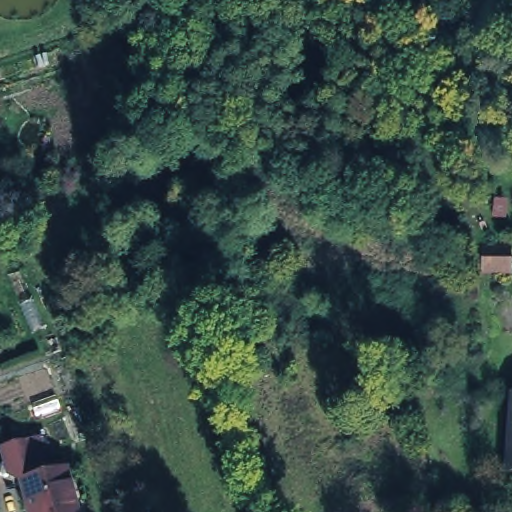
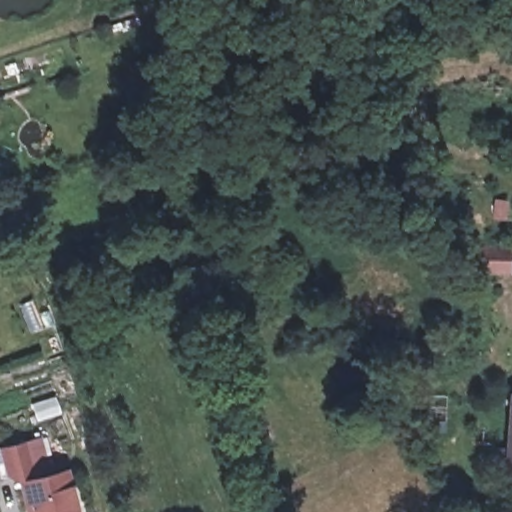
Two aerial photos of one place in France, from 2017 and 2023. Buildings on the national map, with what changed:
unchanged [(508,254),(506,281),(477,277),(481,250),(508,254)]
unchanged [(503,435),(504,398),(512,398),(512,477),(499,475),(503,435)]
unchanged [(6,473),(0,448),(24,442),(34,477),(65,470),(76,512),(27,512),(19,481),(6,473)]

